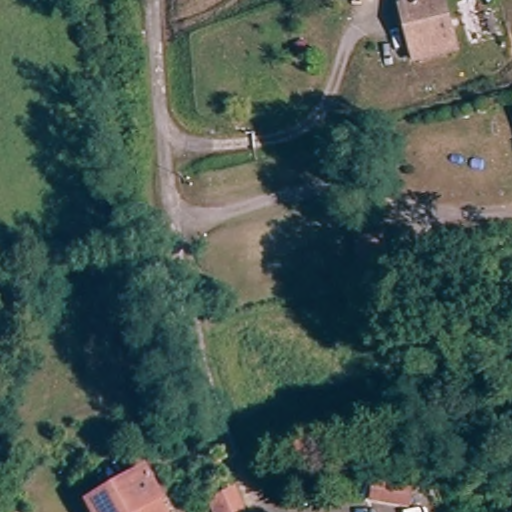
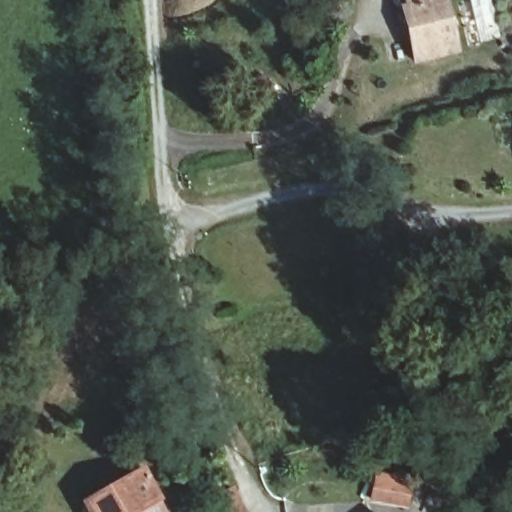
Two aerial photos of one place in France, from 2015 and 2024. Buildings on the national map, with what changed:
unchanged [(398,0),(439,0),(453,50),(409,62),(404,39),(395,8),(400,7),(398,0)]
unchanged [(373,234),(394,231),(397,253),(379,256),(365,258),(362,236),(373,234)]
unchanged [(139,467),(167,512),(87,512),(81,501),(93,495),(139,467)]
unchanged [(237,499),(244,512),(216,512),(214,509),(237,499)]

